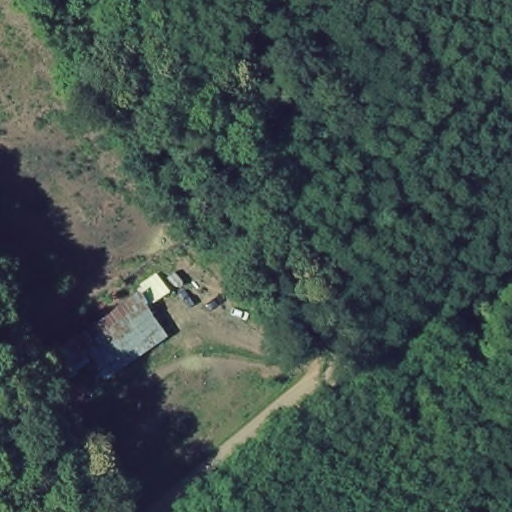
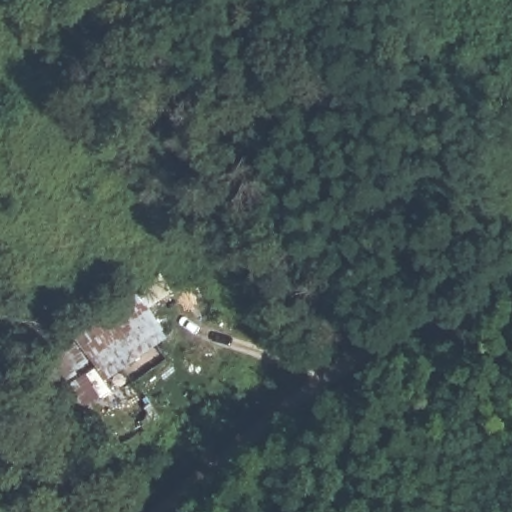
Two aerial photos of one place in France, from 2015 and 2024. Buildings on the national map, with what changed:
unchanged [(88,356),(150,313),(164,338),(105,382),(88,356)]

